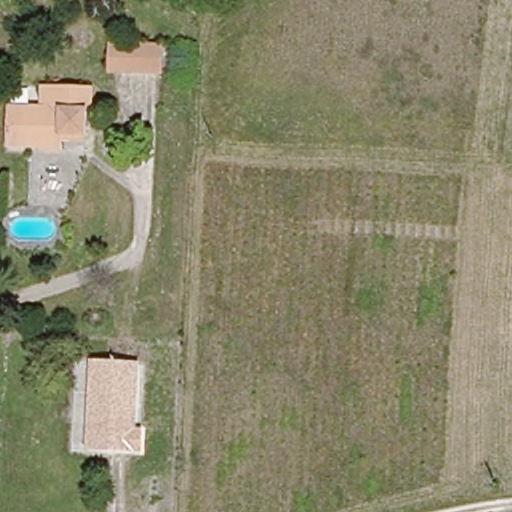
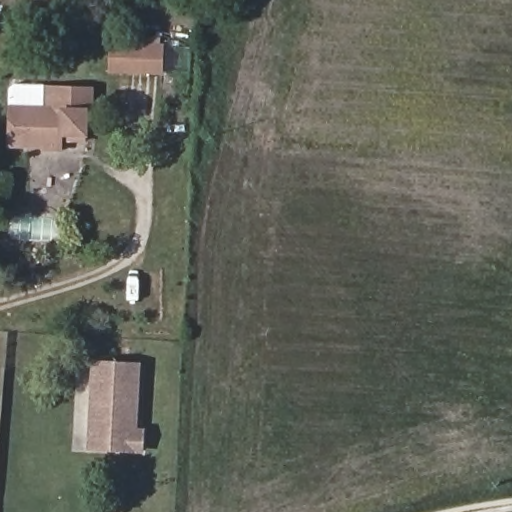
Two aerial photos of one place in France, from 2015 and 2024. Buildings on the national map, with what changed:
unchanged [(166,50),(162,74),(114,65),(117,41),(166,50)]
unchanged [(52,167),(36,164),(38,157),(0,151),(0,149),(7,112),(37,117),(41,99),(90,109),(87,130),(80,129),(75,151),(74,160),(54,156),(52,167)]
unchanged [(92,361),(142,362),(140,430),(145,430),(145,452),(88,450),(92,361)]

